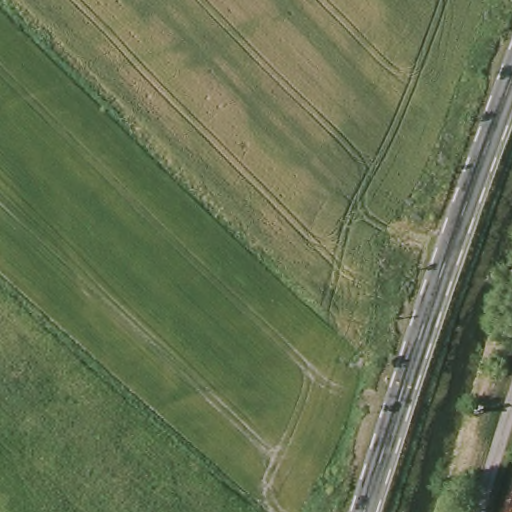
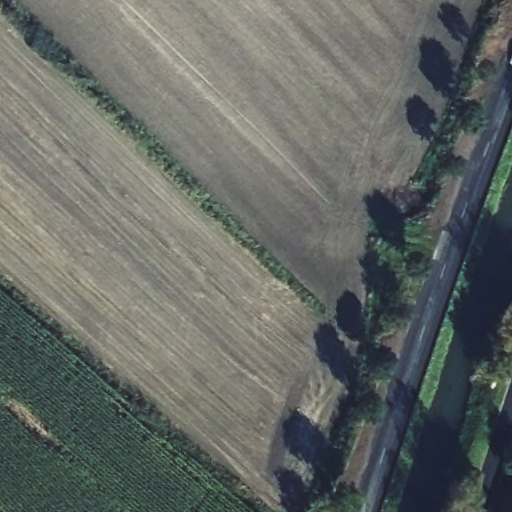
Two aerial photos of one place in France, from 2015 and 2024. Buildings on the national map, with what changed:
unchanged [(512,507),(512,512),(509,512),(512,507)]

